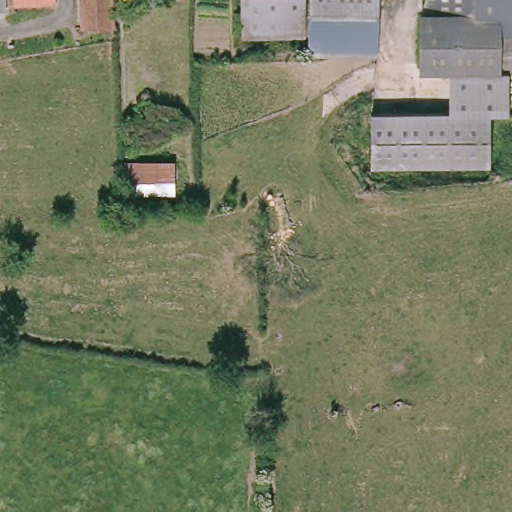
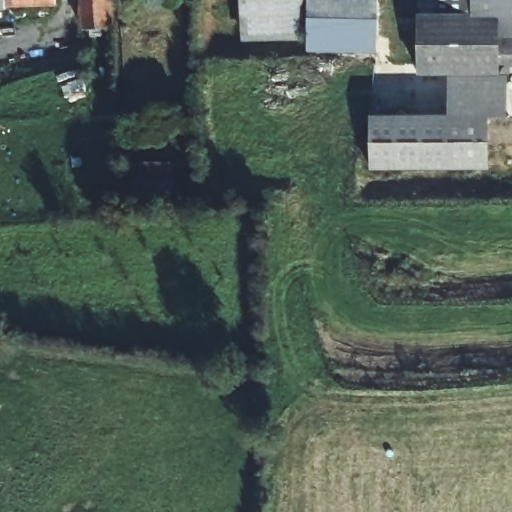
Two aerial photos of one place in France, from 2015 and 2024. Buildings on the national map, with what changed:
unchanged [(53,9),(1,10),(0,2),(0,0),(54,0),(53,9)]
unchanged [(105,29),(77,30),(74,0),(102,0),(105,29)]
unchanged [(300,42),(238,41),(235,0),(299,0),(300,42)]
unchanged [(377,59),(364,59),(310,55),(311,0),(378,0),(377,59)]
unchanged [(512,77),(509,76),(460,73),(431,71),(432,9),(442,9),(442,0),(512,0),(512,77)]
unchanged [(509,76),(510,121),(490,120),(462,119),(460,73),(509,76)]
unchanged [(462,119),(490,120),(492,176),(383,172),(381,116),(462,119)]
unchanged [(122,198),(120,165),(172,163),(173,196),(122,198)]

